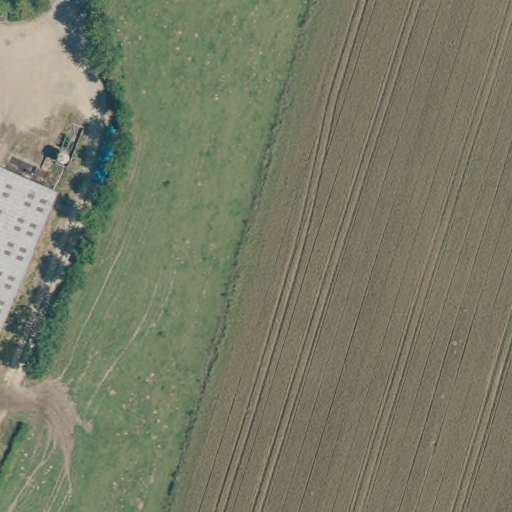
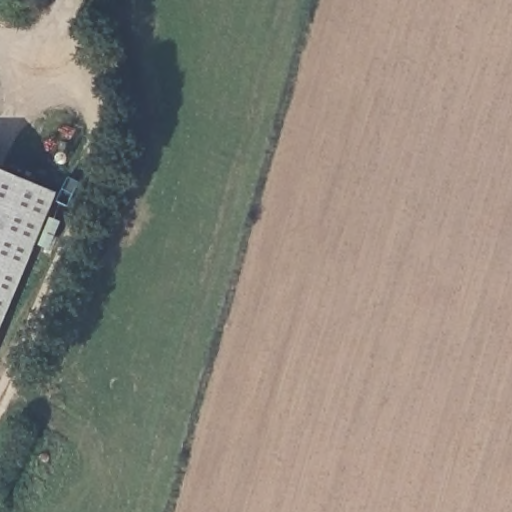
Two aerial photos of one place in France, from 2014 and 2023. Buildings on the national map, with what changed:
unchanged [(58,194),(0,324),(0,168),(58,194)]

